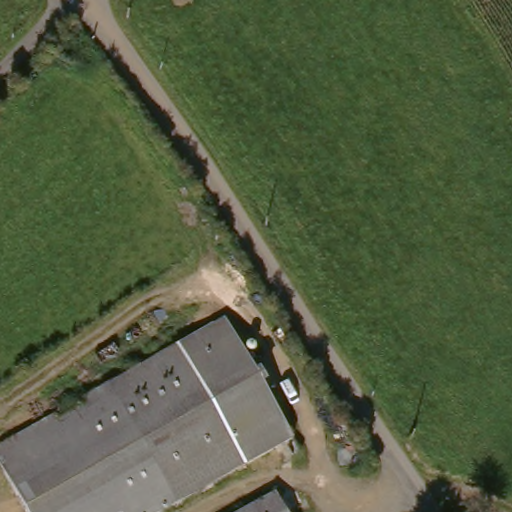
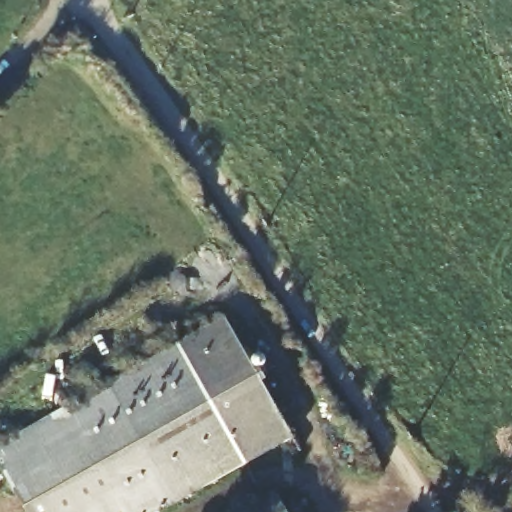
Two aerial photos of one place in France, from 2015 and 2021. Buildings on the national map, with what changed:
unchanged [(229,316),(300,432),(178,512),(109,512),(55,424),(229,316)]
unchanged [(55,424),(109,512),(34,512),(0,456),(55,424)]
unchanged [(297,512),(253,512),(284,492),(297,512)]

